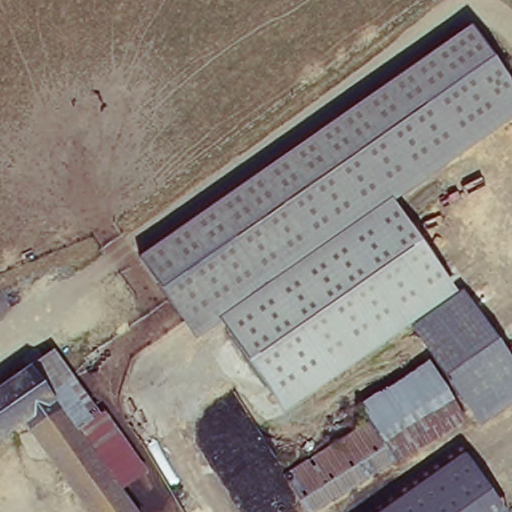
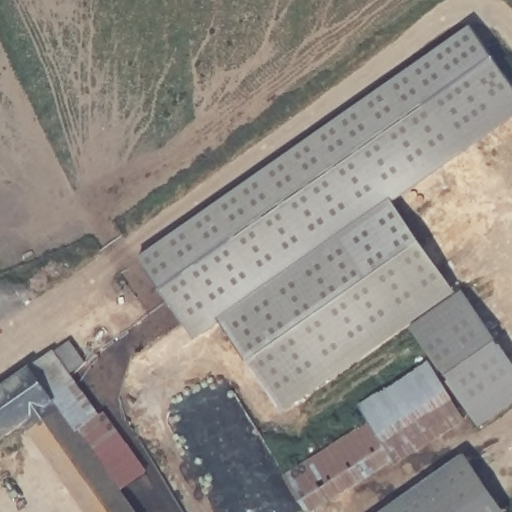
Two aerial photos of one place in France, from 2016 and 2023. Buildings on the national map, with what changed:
unchanged [(512,81),(512,118),(198,341),(141,256),(472,25),(512,81)]
unchanged [(412,327),(286,411),(224,323),(396,201),(458,295),(412,327)]
unchanged [(464,291),(512,361),(512,405),(480,426),(440,366),(412,327),(464,291)]
unchanged [(365,406),(440,366),(471,419),(396,461),(372,419),(365,406)]
unchanged [(46,389),(94,457),(108,448),(129,481),(116,490),(130,512),(84,512),(23,424),(0,440),(0,388),(31,367),(46,389)]
unchanged [(108,448),(94,457),(46,389),(66,376),(93,416),(98,411),(139,474),(129,481),(108,448)]
unchanged [(396,461),(309,507),(285,465),(372,419),(396,461)]
unchanged [(468,454),(508,512),(384,512),(468,454)]

